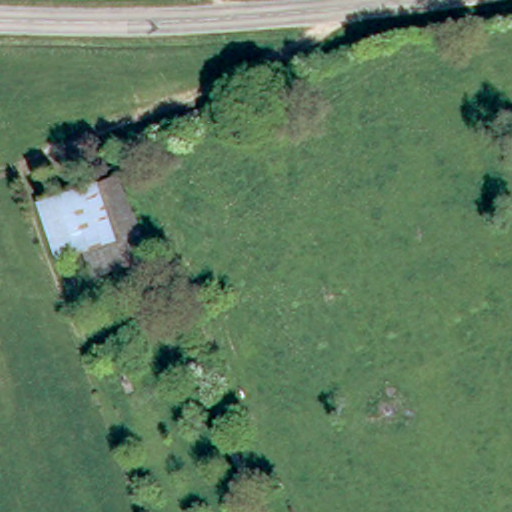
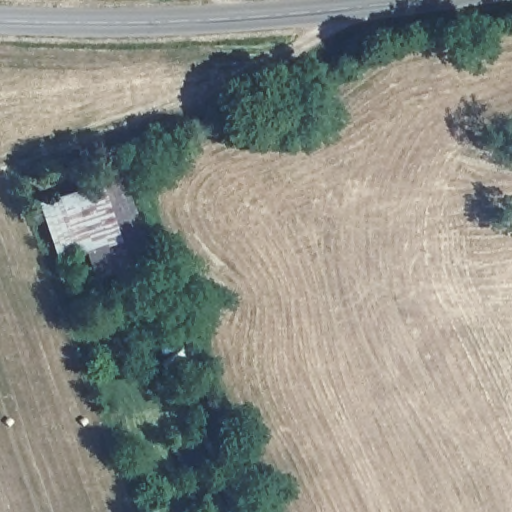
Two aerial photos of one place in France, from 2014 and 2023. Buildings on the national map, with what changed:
unchanged [(136,270),(90,282),(80,258),(55,263),(30,203),(102,179),(136,270)]

